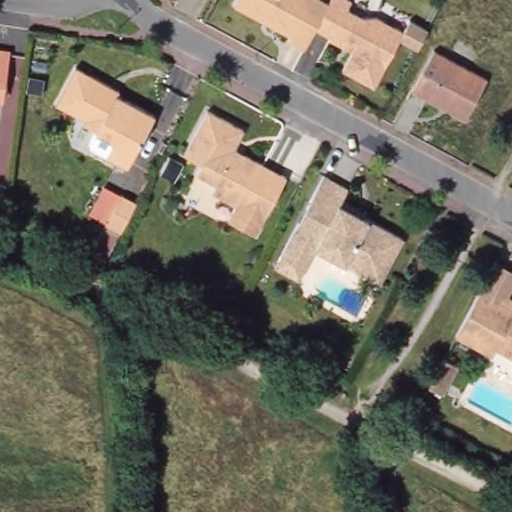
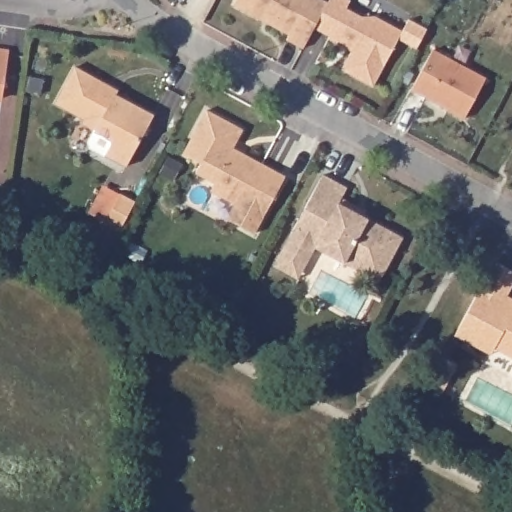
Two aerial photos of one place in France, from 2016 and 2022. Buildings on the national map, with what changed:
unchanged [(263,16),(234,0),(327,0),(326,4),(321,12),(315,23),(304,44),(288,35),(289,32),(262,18),(263,16)]
unchanged [(347,4),(363,12),(376,12),(403,26),(374,81),(343,64),(353,46),(330,33),(331,32),(315,23),(321,12),(326,4),(327,0),(348,0),(347,4)]
unchanged [(434,45),(487,73),(466,113),(413,85),(434,45)]
unchanged [(3,94),(0,93),(0,46),(10,47),(3,94)]
unchanged [(120,86),(117,90),(155,110),(127,162),(91,143),(90,137),(96,126),(84,118),(86,115),(82,113),(56,99),(76,62),(111,81),(120,86)]
unchanged [(213,106),(249,125),(239,144),(291,172),(261,229),(233,214),(241,200),(217,187),(222,179),(202,168),(207,159),(189,149),(213,106)]
unchanged [(292,240),(304,217),(312,204),(329,170),(353,183),(348,193),(372,206),(369,212),(409,233),(385,277),(322,243),(316,253),(305,275),(280,262),(292,240)]
unchanged [(121,194),(136,202),(121,231),(106,223),(121,194)]
unchanged [(496,348),(491,354),(454,336),(493,261),(512,271),(512,288),(508,296),(512,298),(512,357),(496,348)]
unchanged [(458,365),(443,393),(429,386),(443,361),(444,358),(458,365)]

